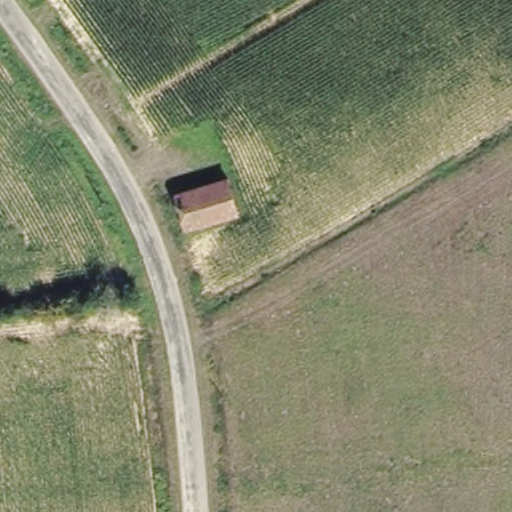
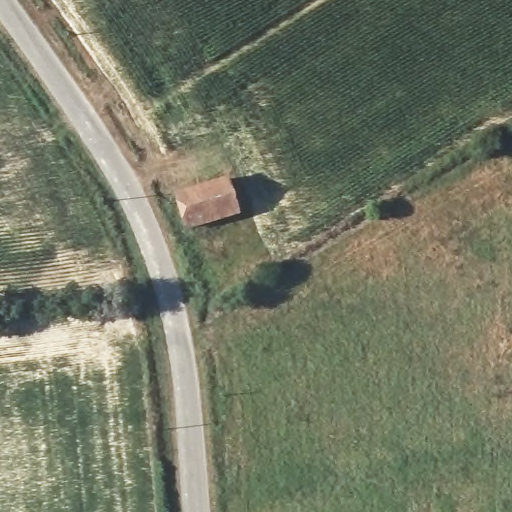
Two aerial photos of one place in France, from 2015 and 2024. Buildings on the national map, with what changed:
unchanged [(207,184),(227,178),(238,210),(217,215),(180,227),(166,196),(207,184)]

